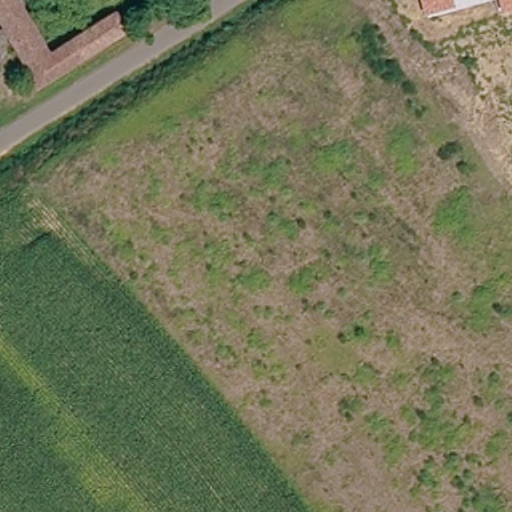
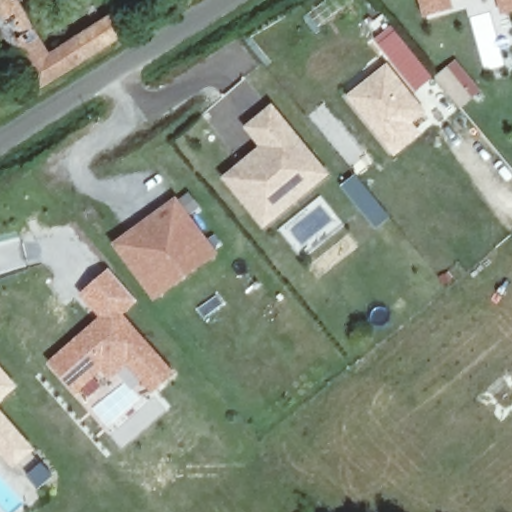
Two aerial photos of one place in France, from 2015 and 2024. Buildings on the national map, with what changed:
unchanged [(112,14),(127,34),(38,88),(0,24),(0,0),(20,0),(49,53),(112,14)]
unchanged [(455,7),(423,15),(419,0),(453,0),(455,7)]
unchanged [(500,16),(496,0),(512,0),(512,13),(500,16)]
new [(431,77),(411,93),(425,112),(385,145),(345,96),(390,61),(378,44),(395,31),(431,77)]
new [(456,60),(480,89),(472,95),(460,106),(435,77),(448,66),(456,60)]
new [(327,174),(264,227),(224,177),(260,146),(244,126),(272,106),(327,174)]
new [(390,216),(375,227),(341,186),(355,175),(390,216)]
new [(216,254),(155,299),(114,243),(175,198),(216,254)]
new [(135,299),(120,312),(172,371),(162,381),(154,372),(144,380),(128,360),(110,376),(102,366),(75,390),(50,363),(102,317),(82,293),(110,270),(135,299)]
new [(0,401),(0,366),(19,387),(0,401)]
new [(14,469),(0,454),(0,410),(35,450),(14,469)]

